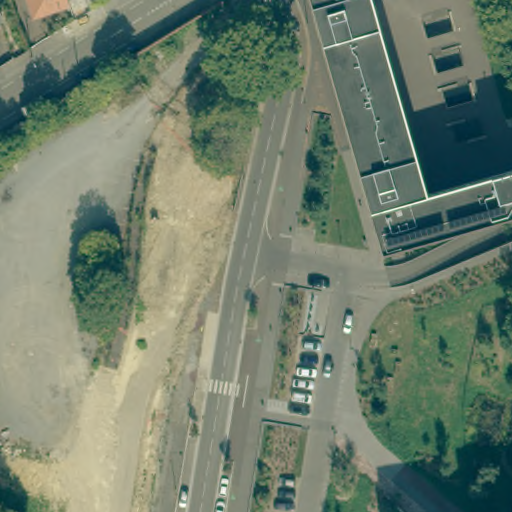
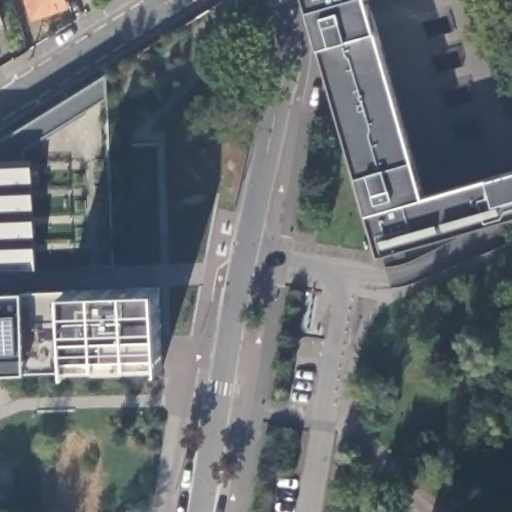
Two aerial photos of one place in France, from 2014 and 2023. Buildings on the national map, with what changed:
unchanged [(30,0),(70,0),(72,5),(36,16),(30,0)]
unchanged [(380,253),(320,45),(306,0),(367,0),(375,27),(423,195),(487,177),(512,170),(512,215),(380,253)]
unchanged [(0,23),(0,8),(5,21),(0,23)]
new [(32,157),(37,270),(0,271),(0,140),(107,74),(107,98),(31,145),(32,157)]
new [(64,290),(159,286),(166,370),(69,372),(27,372),(0,373),(0,293),(24,292),(64,290)]

